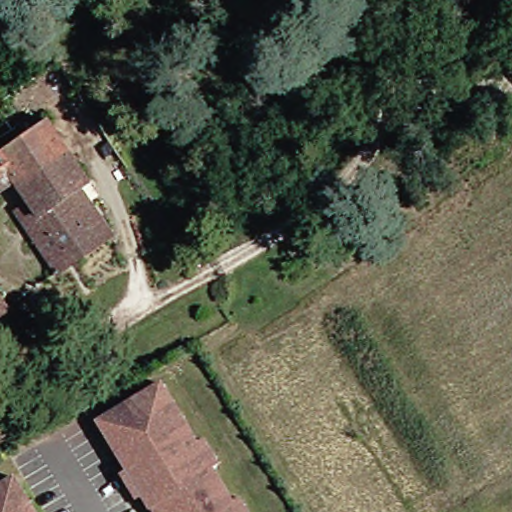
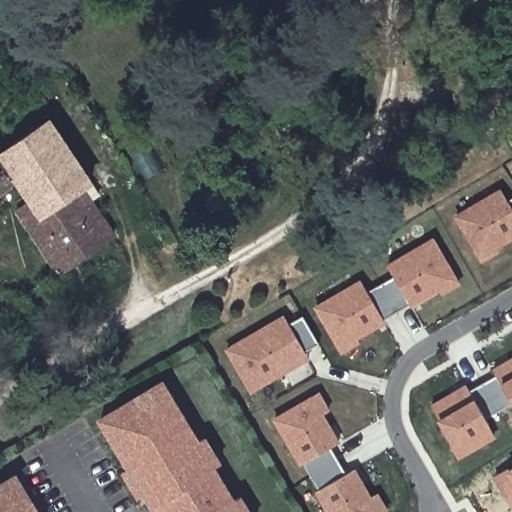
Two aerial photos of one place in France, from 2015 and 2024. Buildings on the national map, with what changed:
unchanged [(88,185),(79,191),(111,239),(53,277),(12,213),(26,203),(13,183),(0,192),(0,112),(20,140),(45,121),(88,185)]
new [(498,251),(482,261),(456,217),(500,191),(507,202),(512,199),(512,238),(496,247),(498,251)]
new [(357,336),(359,340),(342,350),(316,307),(361,280),(367,291),(394,275),(388,264),(433,238),(459,282),(442,292),(440,288),(412,303),(411,302),(383,319),(383,320),(357,336)]
unchanged [(4,314),(0,316),(0,309),(4,314)]
new [(269,380),(249,392),(225,351),(269,325),(282,318),(286,324),(287,325),(301,317),(316,344),(303,352),(307,359),(269,380)]
new [(466,385),(472,395),(499,380),(493,369),(512,358),(512,403),(512,402),(485,417),(489,424),(495,434),(458,456),(452,445),(454,444),(431,405),(466,385)]
unchanged [(144,503),(143,504),(135,490),(129,494),(113,468),(119,464),(101,434),(90,416),(96,412),(146,382),(153,378),(164,396),(189,438),(195,434),(210,459),(204,463),(224,497),(230,493),(242,512),(150,512),(144,503)]
new [(301,461),(299,462),(283,435),(273,419),(317,393),(327,410),(320,414),(337,441),(329,446),(345,473),(352,468),(369,496),(375,492),(385,509),(380,512),(328,512),(316,491),(318,490),(301,461)]
new [(512,470),(512,479),(508,473),(512,470)]
unchanged [(6,477),(10,483),(27,512),(0,512),(0,480),(6,477)]

